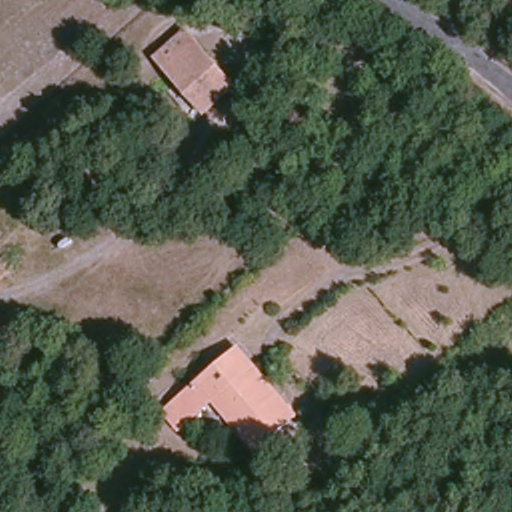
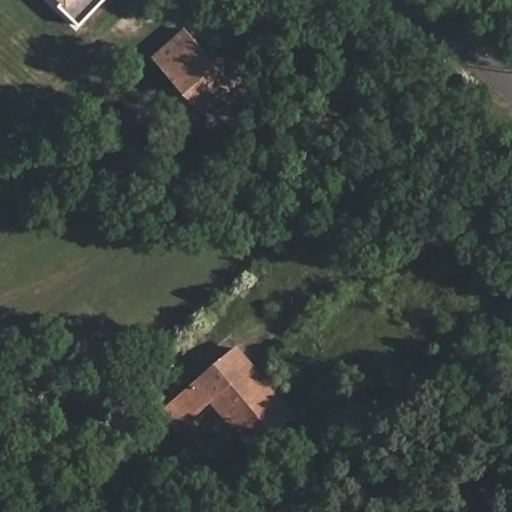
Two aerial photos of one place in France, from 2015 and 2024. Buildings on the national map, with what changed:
new [(77,26),(53,0),(103,0),(77,26)]
unchanged [(158,61),(190,36),(237,95),(207,119),(158,61)]
unchanged [(190,419),(174,400),(239,344),(279,393),(298,412),(289,421),(252,452),(234,430),(212,402),(190,419)]
unchanged [(147,386),(139,375),(152,364),(162,376),(147,386)]

